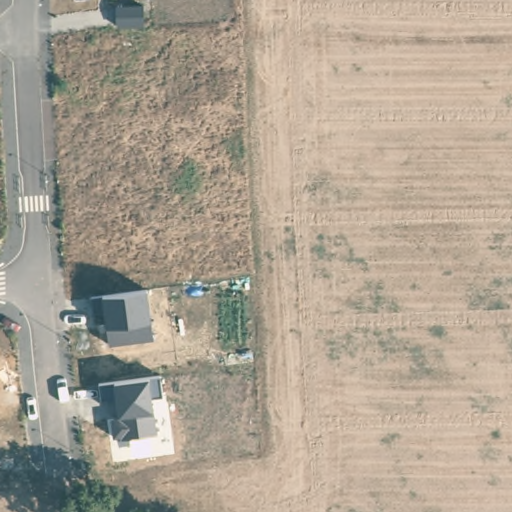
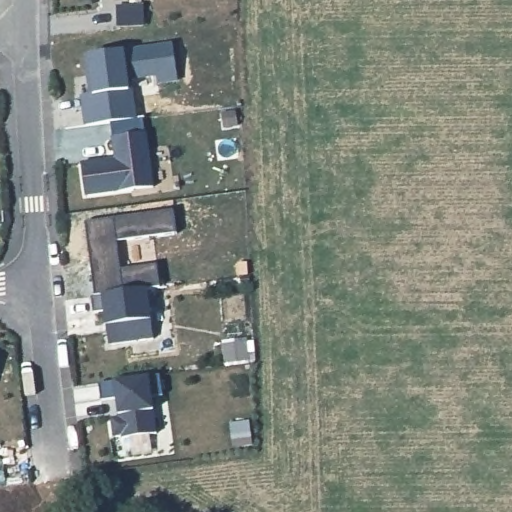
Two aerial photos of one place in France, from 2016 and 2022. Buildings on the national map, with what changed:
new [(114,137),(111,122),(84,127),(80,97),(90,96),(83,56),(126,50),(173,43),(179,82),(159,85),(158,78),(132,81),(138,119),(144,118),(146,132),(114,137)]
new [(117,157),(114,137),(148,132),(155,187),(87,195),(83,162),(117,157)]
unchanged [(108,345),(104,324),(101,310),(94,311),(94,297),(146,292),(153,338),(108,345)]
unchanged [(114,438),(109,418),(117,418),(117,413),(114,397),(101,397),(99,384),(160,377),(162,397),(152,400),(153,410),(155,433),(114,438)]

